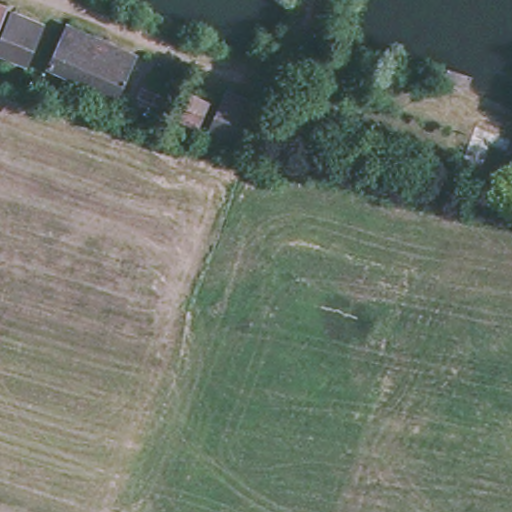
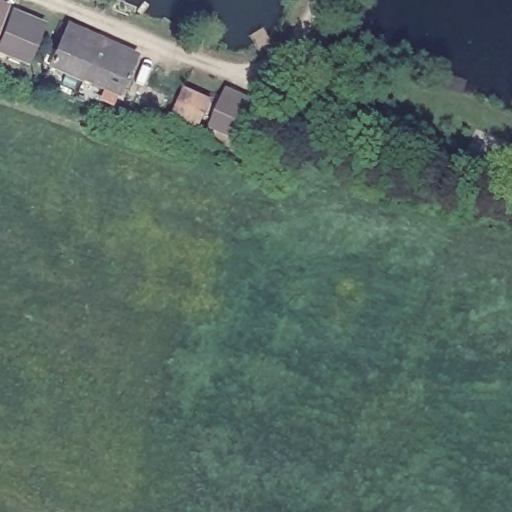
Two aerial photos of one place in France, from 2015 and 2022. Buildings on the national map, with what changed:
unchanged [(0,17),(0,7),(4,9),(0,17)]
unchanged [(0,40),(7,24),(10,15),(39,26),(35,36),(23,64),(0,56),(0,40)]
unchanged [(82,82),(81,84),(57,74),(69,48),(77,30),(100,40),(132,55),(126,69),(114,96),(82,82)]
unchanged [(210,126),(219,100),(222,91),(252,101),(249,111),(240,136),(210,126)]

